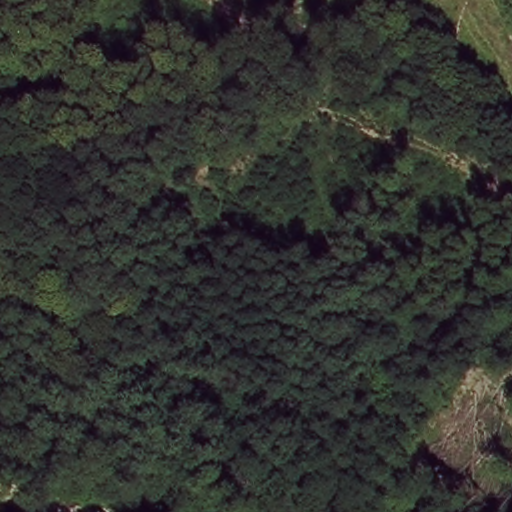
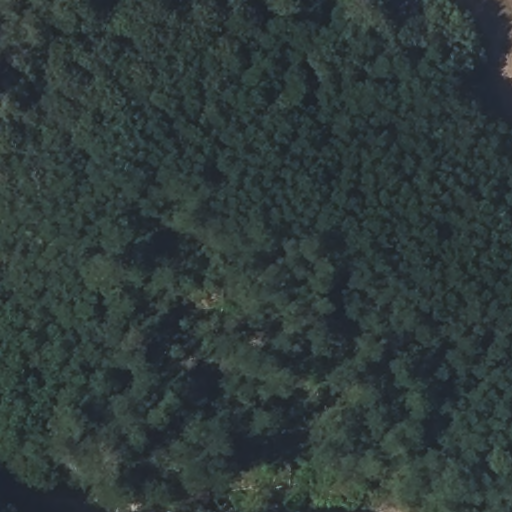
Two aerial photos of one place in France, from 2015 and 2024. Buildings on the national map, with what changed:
[]

